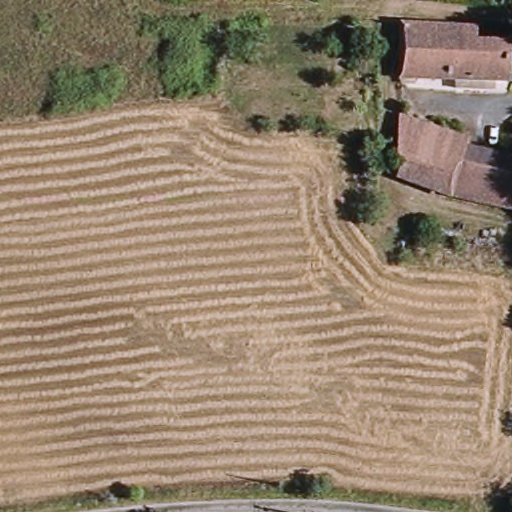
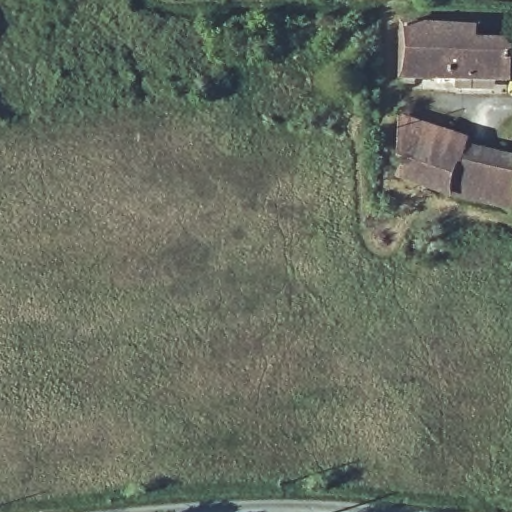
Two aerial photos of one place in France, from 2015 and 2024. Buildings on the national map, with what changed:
unchanged [(408,25),(480,30),(478,43),(511,45),(510,80),(404,74),(408,25)]
unchanged [(407,119),(462,144),(453,175),(512,191),(512,212),(391,170),(395,160),(407,119)]
unchanged [(512,160),(512,191),(453,175),(462,144),(512,160)]

